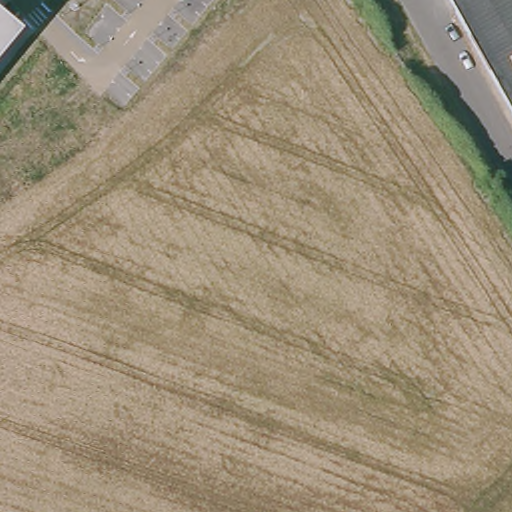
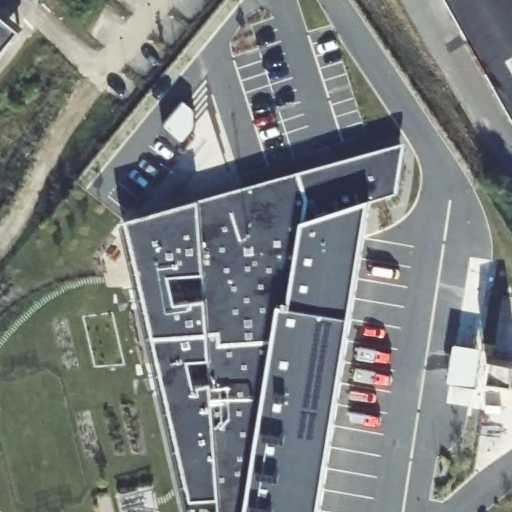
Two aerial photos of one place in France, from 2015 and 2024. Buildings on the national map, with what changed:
unchanged [(512,125),(442,0),(512,0),(512,125)]
unchanged [(0,58),(0,9),(24,27),(0,58)]
new [(396,195),(371,201),(321,512),(186,512),(128,233),(404,150),(396,195)]
new [(489,373),(512,373),(512,396),(490,396),(489,373)]

